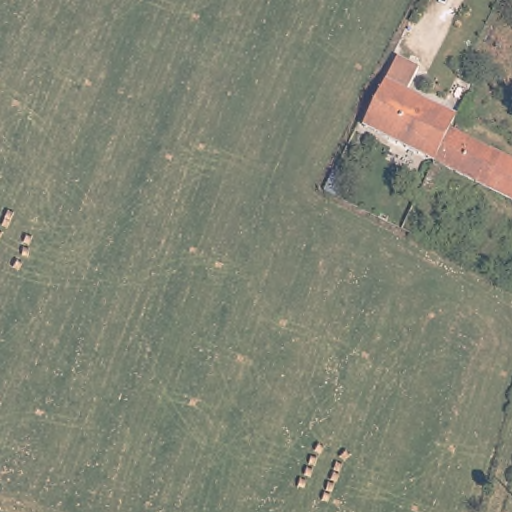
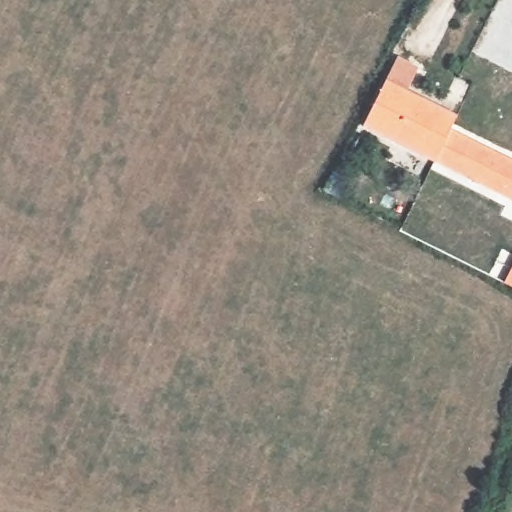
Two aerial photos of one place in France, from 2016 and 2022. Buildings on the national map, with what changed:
unchanged [(434,158),(366,125),(400,56),(420,66),(408,87),(456,111),(450,125),(434,158)]
unchanged [(450,125),(512,156),(512,197),(434,158),(450,125)]
unchanged [(330,177),(340,160),(355,167),(346,186),(330,177)]
unchanged [(345,201),(351,191),(385,210),(379,219),(345,201)]

